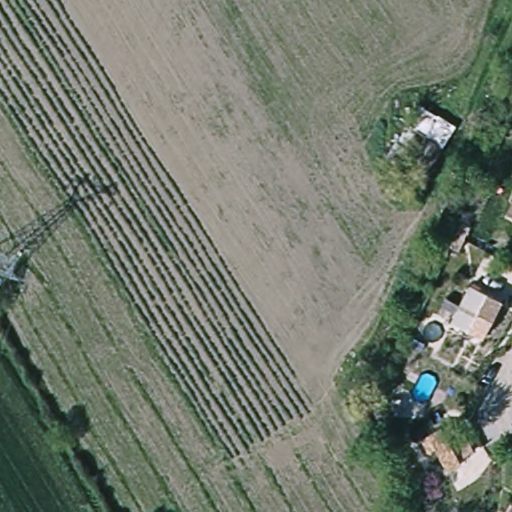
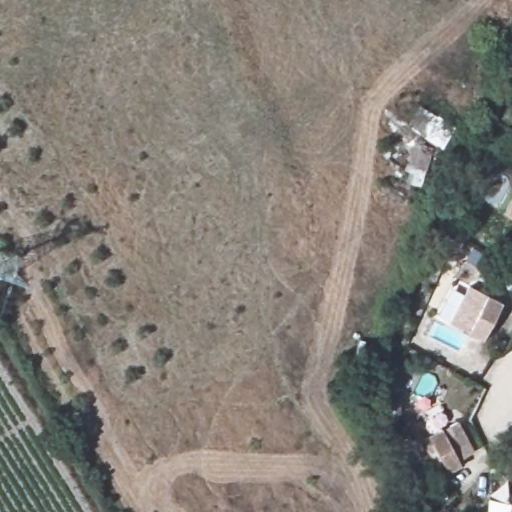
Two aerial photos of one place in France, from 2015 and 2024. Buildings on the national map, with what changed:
unchanged [(451,126),(420,184),(385,165),(415,103),(451,126)]
unchanged [(506,215),(512,203),(512,217),(506,215)]
unchanged [(502,302),(483,340),(452,324),(470,286),(502,302)]
unchanged [(455,418),(473,451),(460,458),(463,464),(447,472),(435,450),(428,455),(421,439),(455,418)]
unchanged [(508,512),(512,505),(512,512),(508,512)]

